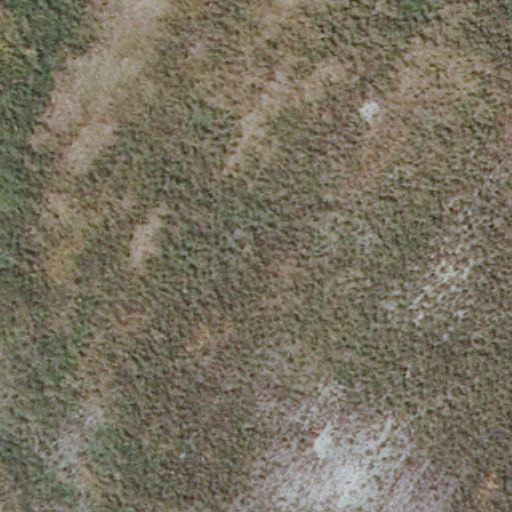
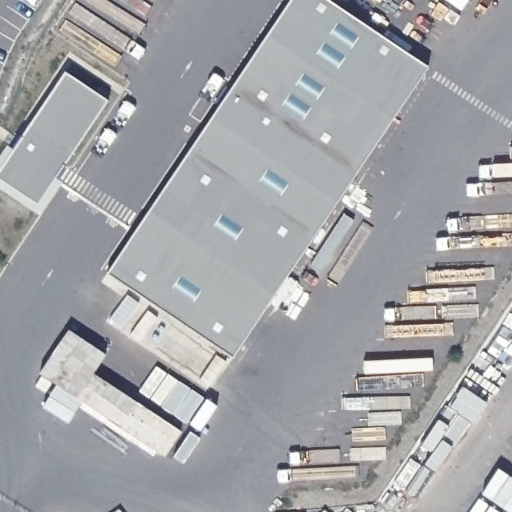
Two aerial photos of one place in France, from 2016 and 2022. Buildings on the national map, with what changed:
new [(290,0),(329,0),(428,67),(234,355),(109,271),(290,0)]
new [(107,101),(37,205),(0,181),(0,168),(64,72),(107,101)]

